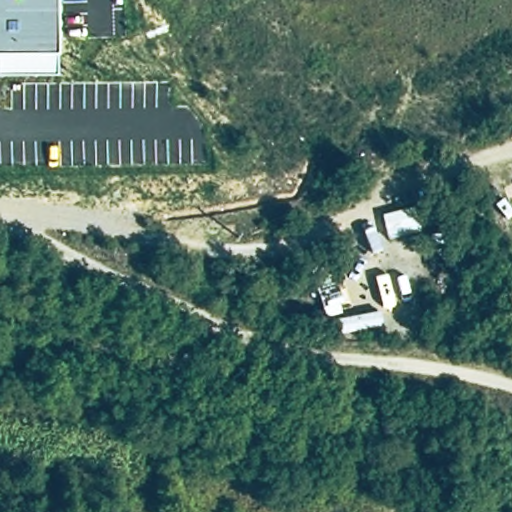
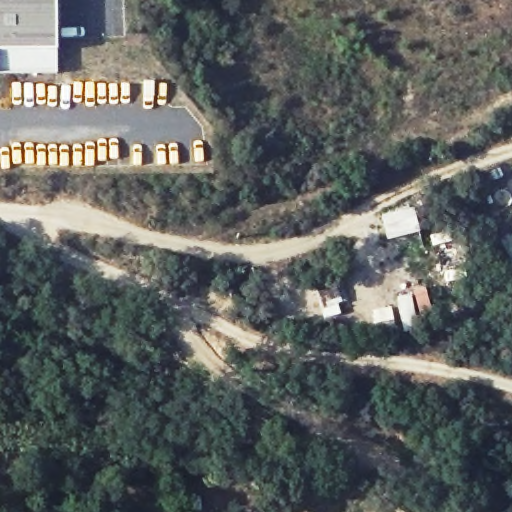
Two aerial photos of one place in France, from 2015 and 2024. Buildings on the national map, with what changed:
unchanged [(57,50),(56,73),(0,73),(0,0),(56,0),(57,50)]

